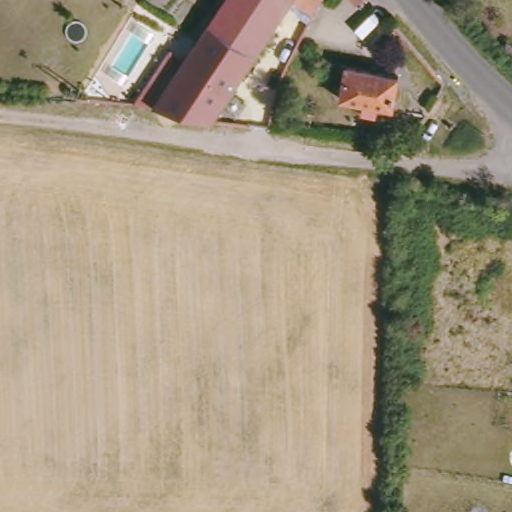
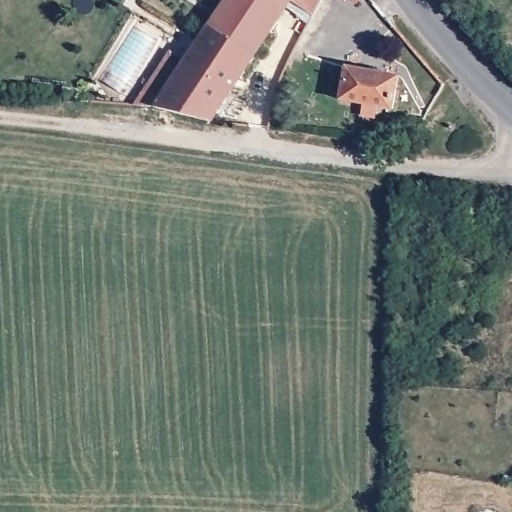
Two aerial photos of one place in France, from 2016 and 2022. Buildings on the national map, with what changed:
unchanged [(216,120),(159,106),(190,61),(230,0),(296,0),(216,120)]
unchanged [(319,14),(297,0),(326,0),(319,14)]
unchanged [(139,105),(176,51),(190,61),(159,106),(139,105)]
unchanged [(346,67),(399,76),(393,109),(341,100),(346,67)]

